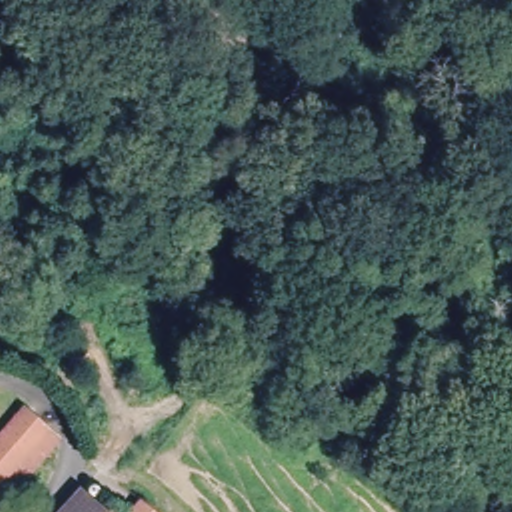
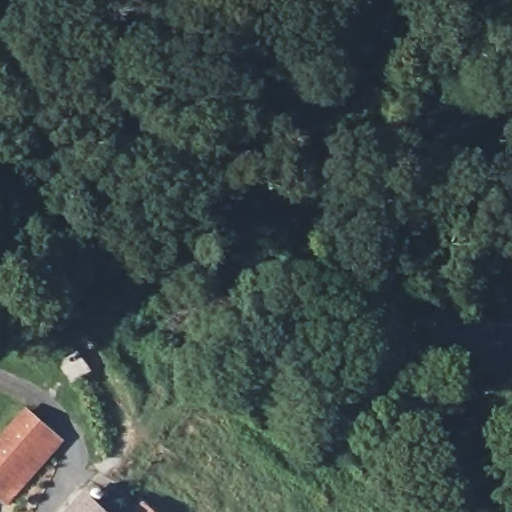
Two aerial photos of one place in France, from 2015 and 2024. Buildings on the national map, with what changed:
unchanged [(30,419),(55,438),(1,501),(0,499),(0,454),(30,419)]
unchanged [(90,503),(100,512),(82,512),(90,503)]
unchanged [(142,505),(150,512),(136,512),(142,505)]

